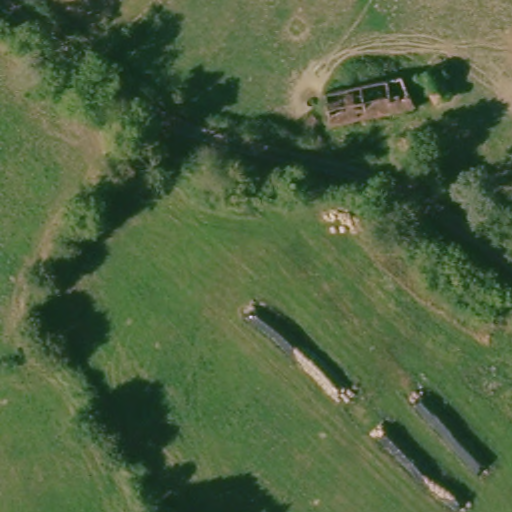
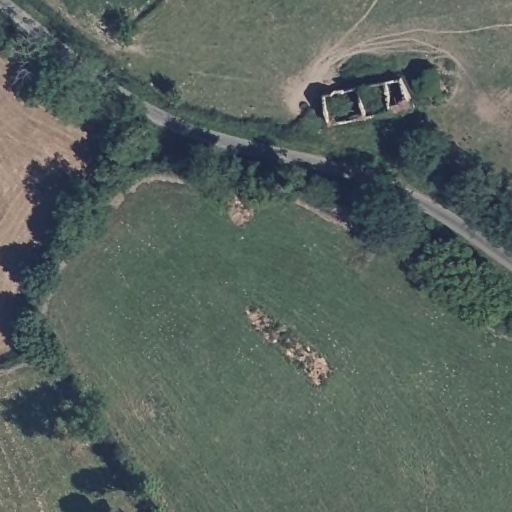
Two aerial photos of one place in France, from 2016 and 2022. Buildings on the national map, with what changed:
unchanged [(457,91),(435,102),(422,74),(445,63),(457,91)]

